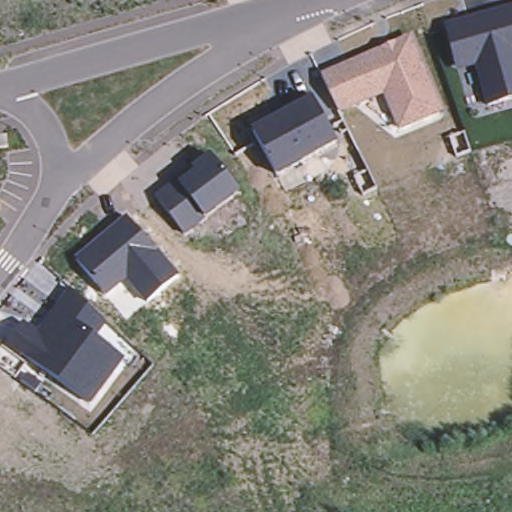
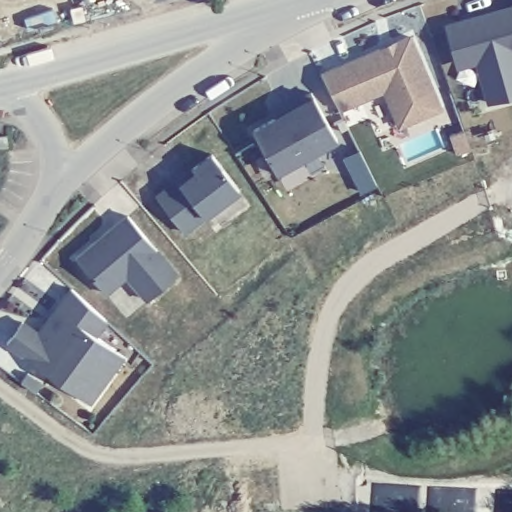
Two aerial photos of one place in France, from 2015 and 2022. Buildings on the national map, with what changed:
unchanged [(512,7),(512,96),(487,103),(477,62),(457,66),(447,24),(512,7)]
unchanged [(412,34),(443,108),(398,126),(383,92),(340,110),(322,69),(412,34)]
unchanged [(313,95),(338,140),(277,175),(252,130),(313,95)]
unchanged [(155,196),(175,181),(177,184),(195,172),(192,166),(212,152),(240,194),(206,218),(184,233),(155,196)]
unchanged [(76,257),(128,214),(156,248),(158,246),(178,272),(147,299),(127,276),(107,295),(76,257)]
unchanged [(109,320),(95,339),(125,358),(90,405),(7,344),(27,316),(40,325),(67,286),(109,320)]

